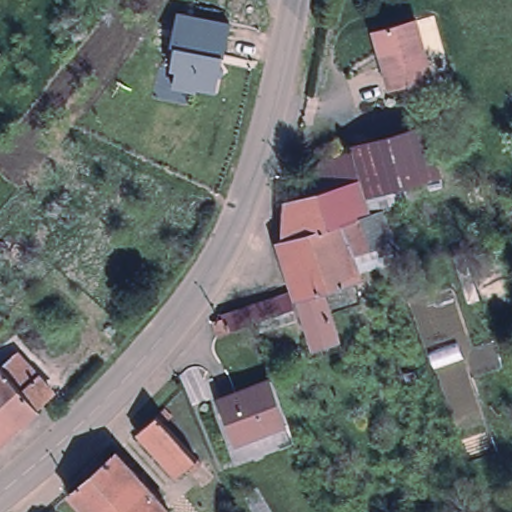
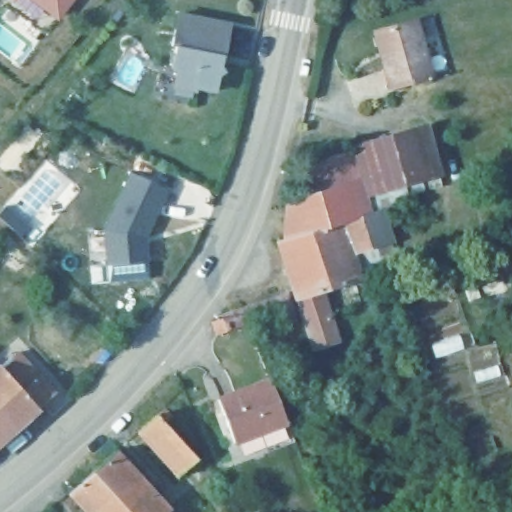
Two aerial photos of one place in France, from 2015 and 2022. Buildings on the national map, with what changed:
new [(32,0),(74,0),(59,20),(32,0)]
unchanged [(199,90),(198,92),(174,88),(177,72),(172,71),(176,50),(173,49),(180,10),(235,20),(219,93),(199,90)]
unchanged [(417,16),(434,76),(392,86),(377,28),(417,16)]
unchanged [(384,180),(380,163),(372,131),(411,119),(419,151),(423,169),(384,180)]
unchanged [(305,161),(355,145),(360,169),(310,184),(305,161)]
unchanged [(310,184),(360,169),(369,202),(284,229),(287,191),(310,184)]
new [(107,264),(104,230),(130,172),(169,190),(147,238),(150,261),(107,264)]
unchanged [(299,297),(297,290),(279,231),(284,229),(369,202),(370,204),(380,201),(390,233),(396,250),(358,262),(360,270),(322,282),(325,289),(339,333),(313,341),(299,297)]
unchanged [(293,300),(250,314),(217,325),(214,315),(224,312),(222,308),(289,285),(293,300)]
unchanged [(0,443),(0,366),(15,352),(55,395),(0,443)]
unchanged [(272,380),(288,422),(235,442),(219,400),(272,380)]
unchanged [(165,408),(172,415),(165,421),(201,462),(192,471),(188,467),(179,476),(139,432),(165,408)]
unchanged [(117,451),(170,510),(167,512),(87,512),(70,493),(117,451)]

